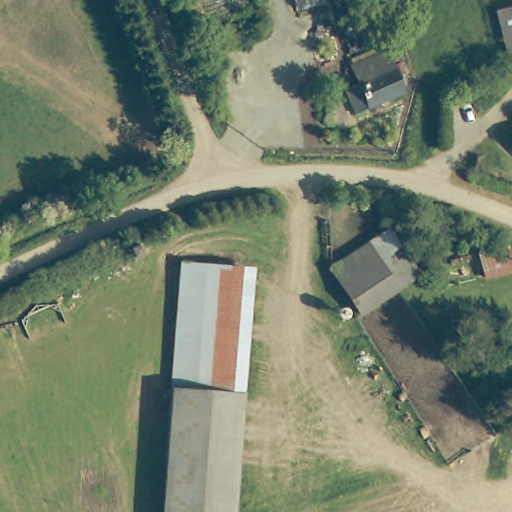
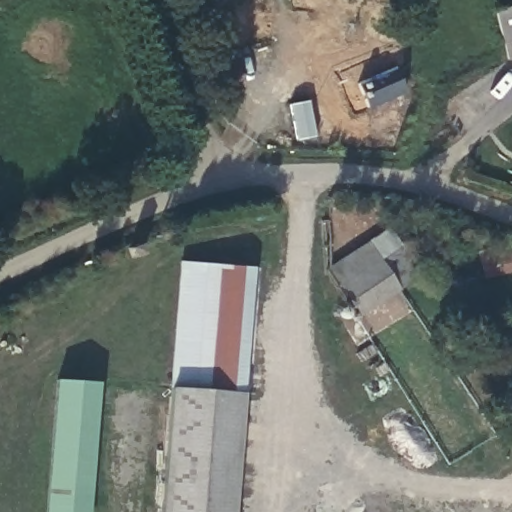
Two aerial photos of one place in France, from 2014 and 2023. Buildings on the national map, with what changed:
unchanged [(510,61),(495,12),(512,7),(512,60),(510,61)]
unchanged [(403,95),(354,110),(347,85),(359,81),(354,64),(392,52),(403,95)]
unchanged [(388,248),(402,240),(421,274),(359,310),(330,259),(378,232),(388,248)]
unchanged [(258,267),(249,389),(170,388),(181,260),(258,267)]
new [(88,512),(46,512),(56,380),(100,382),(88,512)]
unchanged [(242,399),(231,512),(160,512),(168,394),(242,399)]

